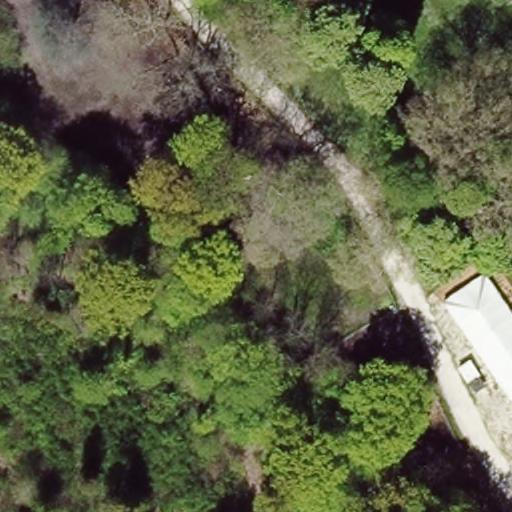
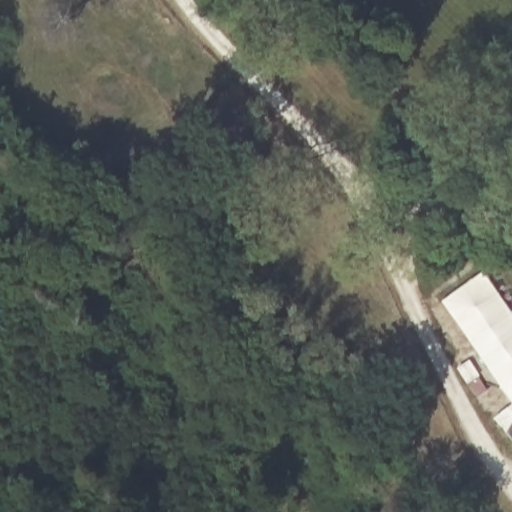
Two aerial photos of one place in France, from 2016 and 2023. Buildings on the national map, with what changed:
unchanged [(512,313),(512,402),(442,303),(485,273),(512,313)]

